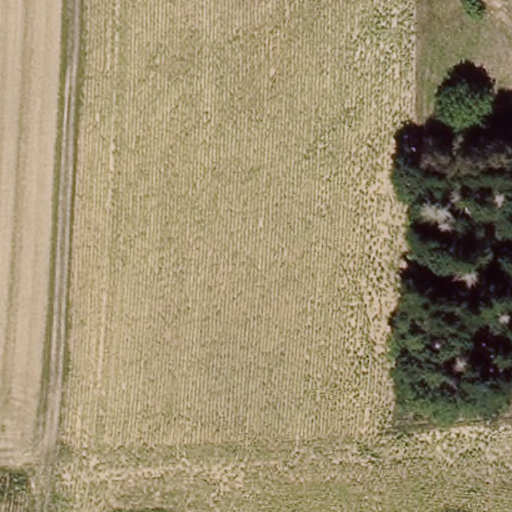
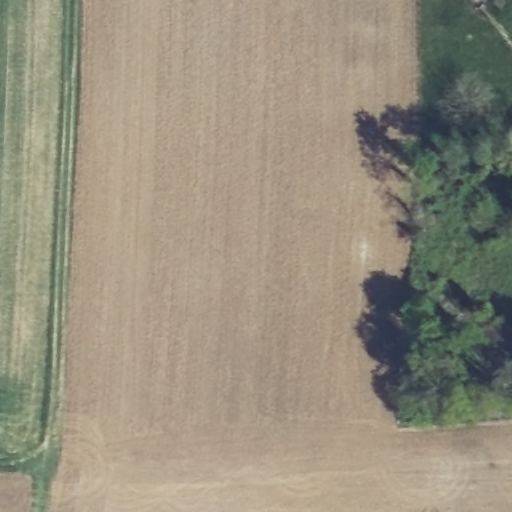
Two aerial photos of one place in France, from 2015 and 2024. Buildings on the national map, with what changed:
[]

